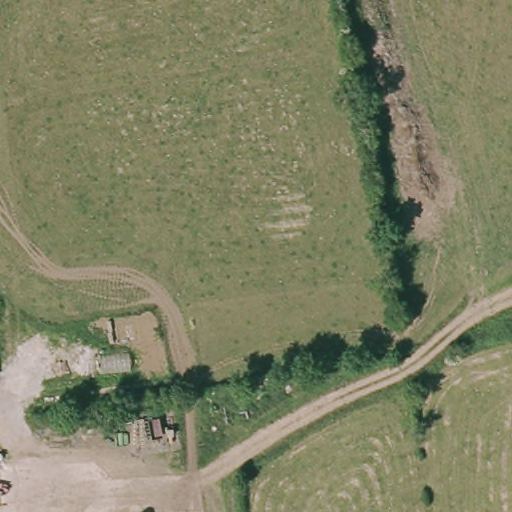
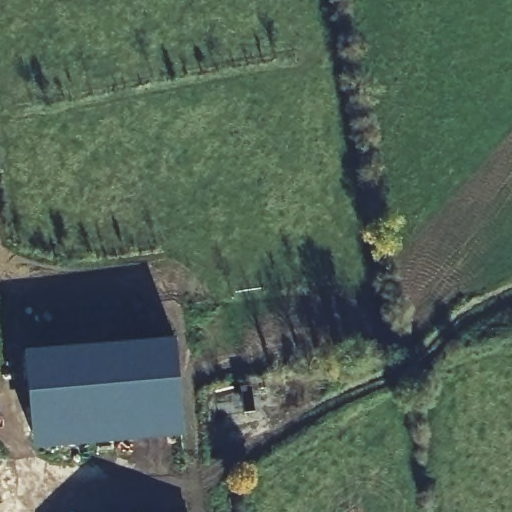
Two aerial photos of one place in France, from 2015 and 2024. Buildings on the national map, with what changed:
new [(176,338),(185,434),(34,448),(26,351),(176,338)]

